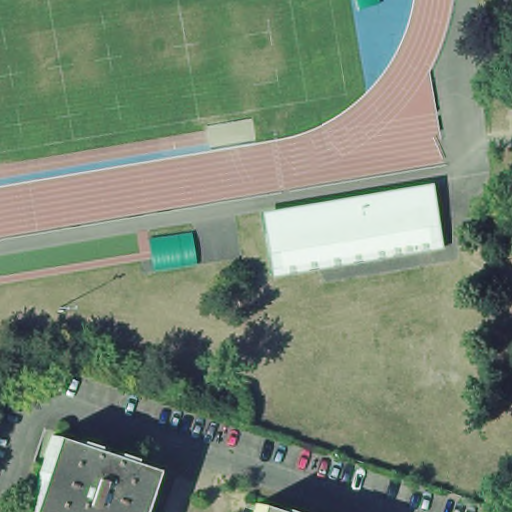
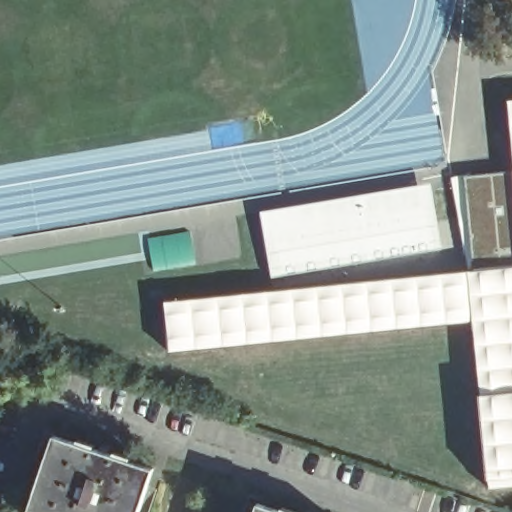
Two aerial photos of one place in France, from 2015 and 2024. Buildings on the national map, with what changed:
new [(484,486),(471,322),(166,348),(163,301),(469,273),(459,177),(509,171),(503,102),(512,101),(512,484),(484,486)]
unchanged [(429,182),(441,253),(268,280),(256,211),(429,182)]
unchanged [(49,435),(148,468),(133,512),(24,512),(49,435)]
unchanged [(246,503),(271,512),(243,512),(246,503)]

